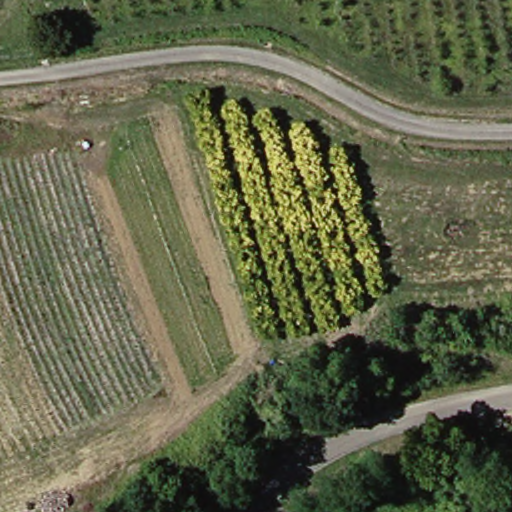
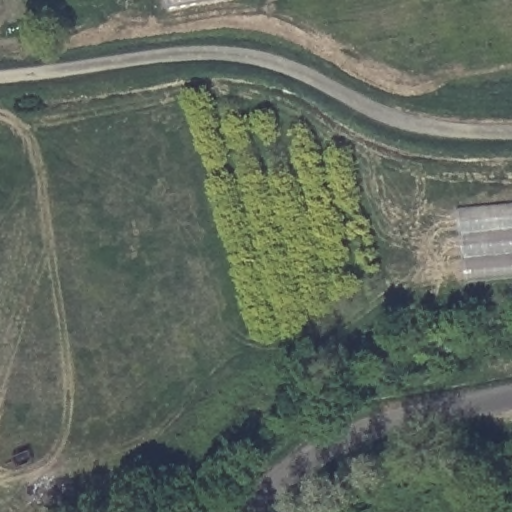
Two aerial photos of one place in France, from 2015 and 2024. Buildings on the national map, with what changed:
new [(164,0),(224,0),(166,11),(164,0)]
new [(512,203),(512,276),(473,279),(459,207),(512,203)]

